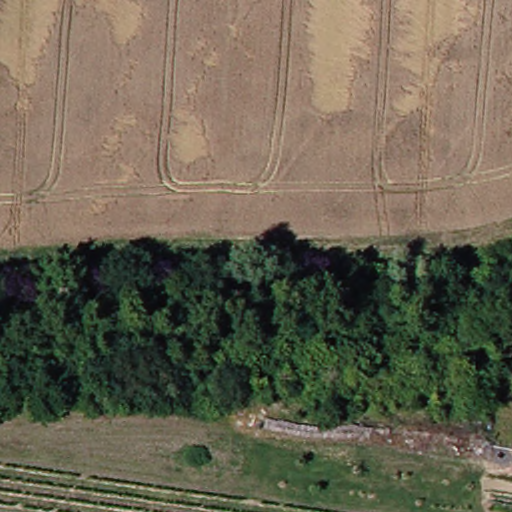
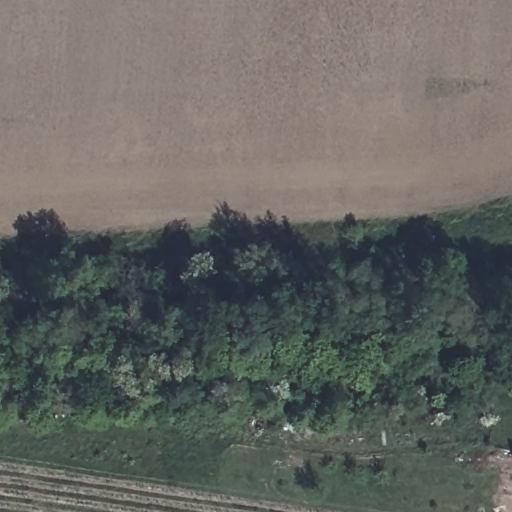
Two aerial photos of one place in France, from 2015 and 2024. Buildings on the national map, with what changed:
[]

